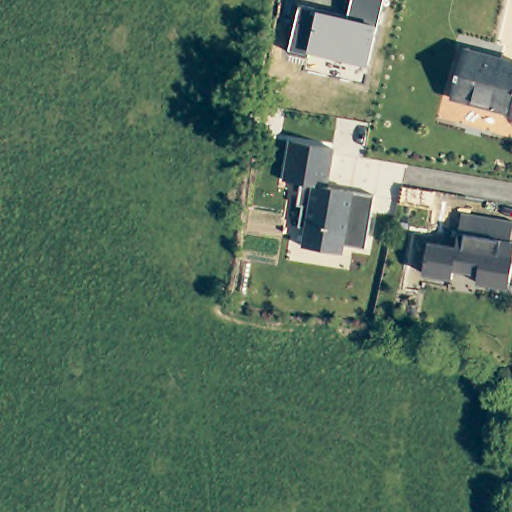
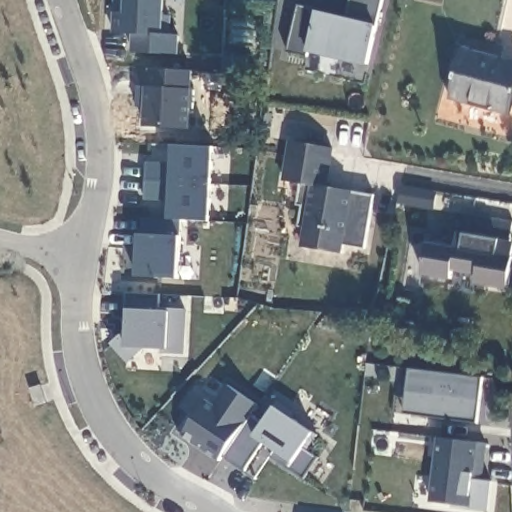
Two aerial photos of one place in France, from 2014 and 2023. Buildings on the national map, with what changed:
new [(166,18),(174,17),(173,32),(183,32),(182,53),(134,52),(136,33),(113,32),(115,0),(168,0),(166,18)]
unchanged [(317,9),(347,17),(351,0),(383,0),(376,25),(366,65),(307,51),(306,56),(287,50),(299,3),(317,9)]
unchanged [(501,58),(512,61),(512,113),(451,96),(465,48),(501,58)]
new [(190,127),(143,125),(145,106),(136,105),(137,84),(150,84),(150,68),(194,70),(190,127)]
unchanged [(342,147),(335,185),(383,195),(373,249),(350,244),(349,253),(311,245),(315,226),(307,225),(311,204),(306,203),(310,182),(293,179),(301,139),(342,147)]
new [(212,220),(181,219),(170,218),(170,200),(145,200),(146,160),(173,161),(174,145),(215,148),(212,220)]
new [(402,184),(431,189),(429,206),(398,201),(402,184)]
unchanged [(508,287),(476,282),(478,273),(453,268),(451,277),(423,273),(428,241),(456,246),(462,212),(512,221),(512,230),(507,255),(512,256),(512,267),(508,287)]
new [(180,234),(179,278),(136,276),(139,233),(145,232),(145,217),(170,218),(181,219),(180,234)]
new [(162,310),(172,309),(189,308),(187,355),(165,355),(165,348),(145,348),(132,362),(112,343),(127,328),(128,308),(126,293),(160,294),(162,310)]
new [(478,421),(405,413),(411,367),(483,376),(478,421)]
new [(217,404),(230,384),(260,405),(252,415),(264,422),(276,404),(315,431),(318,435),(307,450),(319,458),(305,477),(272,457),(276,450),(268,444),(246,472),(224,456),(220,462),(182,436),(209,398),(217,404)]
new [(486,479),(495,480),(490,511),(430,502),(438,436),(490,443),(486,479)]

